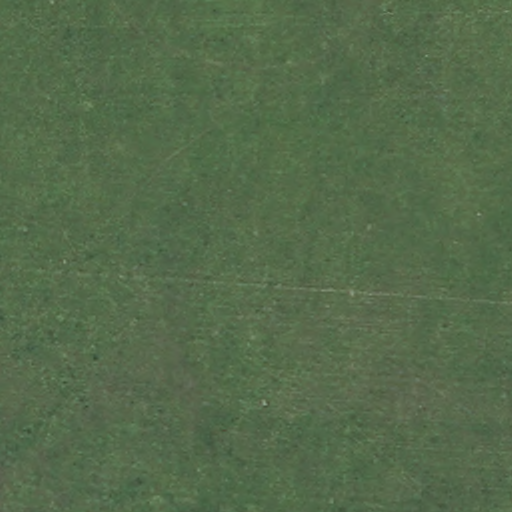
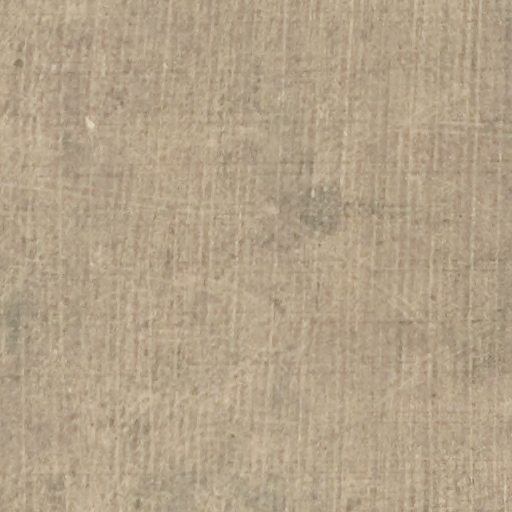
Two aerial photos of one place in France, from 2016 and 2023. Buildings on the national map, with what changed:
[]

